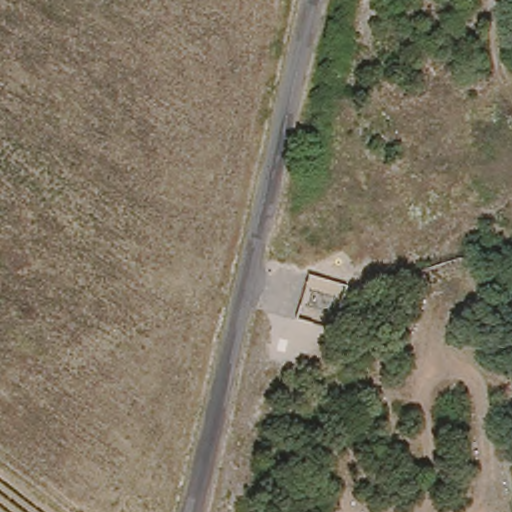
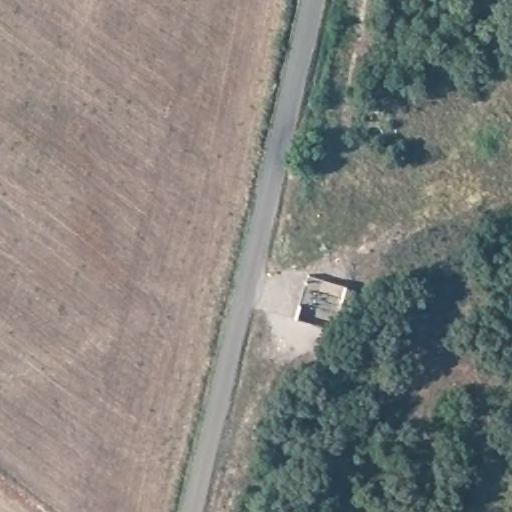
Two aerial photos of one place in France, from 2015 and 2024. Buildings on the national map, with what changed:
[]

